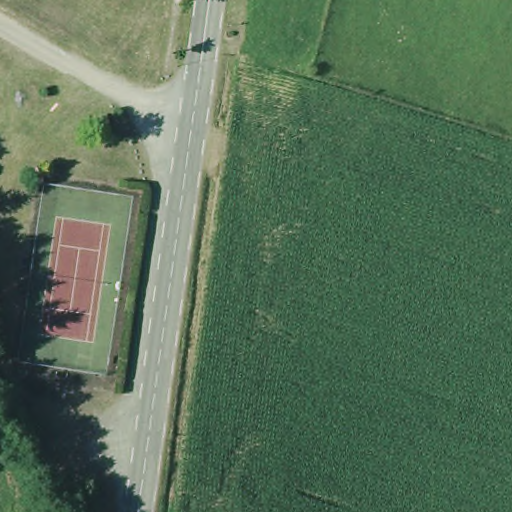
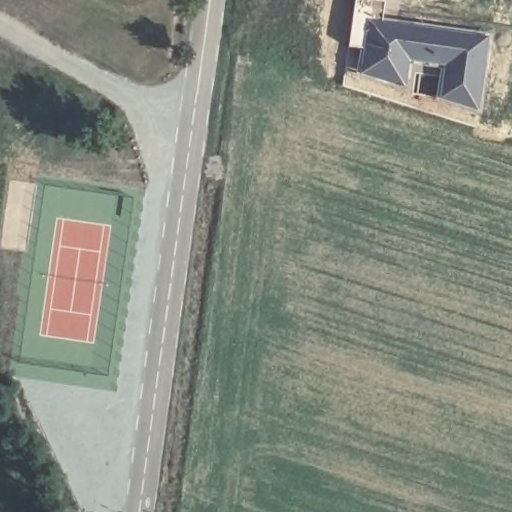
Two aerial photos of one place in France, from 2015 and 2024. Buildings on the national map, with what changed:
new [(352,0),(377,0),(383,1),(380,20),(365,19),(360,49),(347,48),(352,0)]
new [(360,49),(365,19),(380,20),(420,24),(490,34),(479,113),(432,101),(436,69),(423,66),(423,67),(418,68),(412,93),(356,76),(360,49)]

